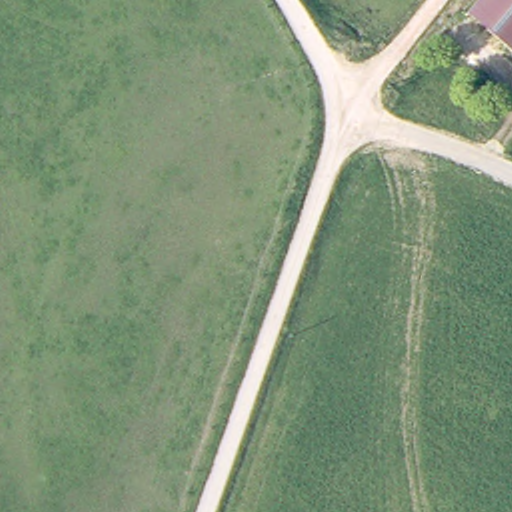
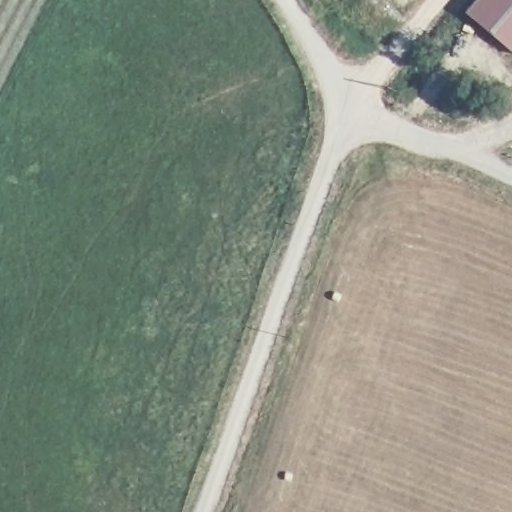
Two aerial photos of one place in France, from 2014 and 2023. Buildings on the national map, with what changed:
unchanged [(478,0),(512,0),(512,51),(467,14),(478,0)]

